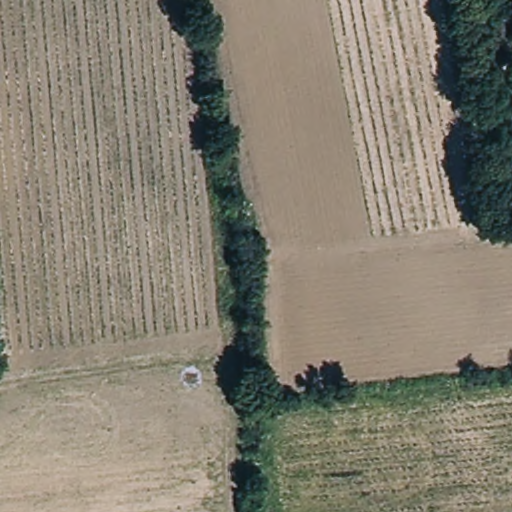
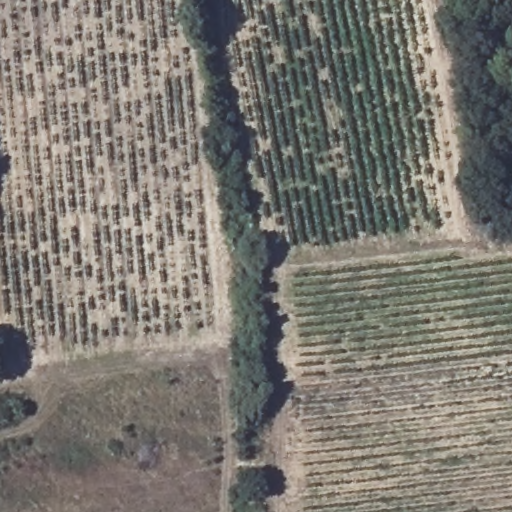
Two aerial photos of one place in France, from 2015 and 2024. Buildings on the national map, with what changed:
unchanged [(487,9),(501,7),(504,45),(489,46),(487,9)]

